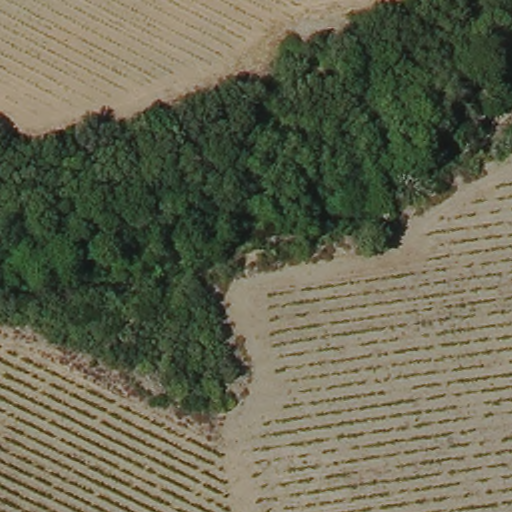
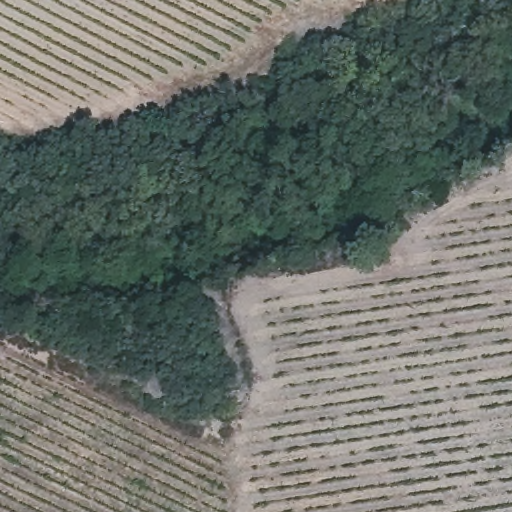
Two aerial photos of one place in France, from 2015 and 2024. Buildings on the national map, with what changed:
unchanged [(157,374),(160,391),(160,392),(143,395),(141,377),(157,374)]

